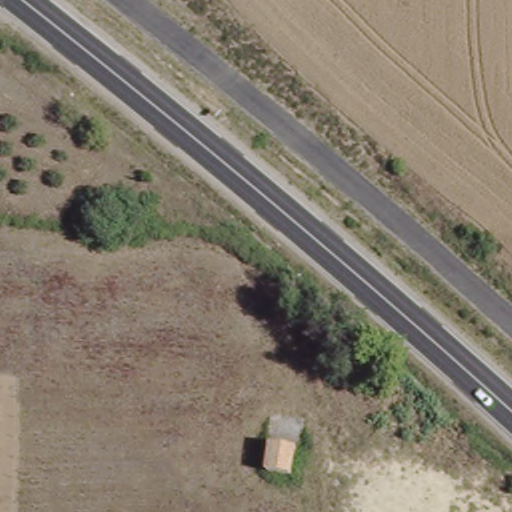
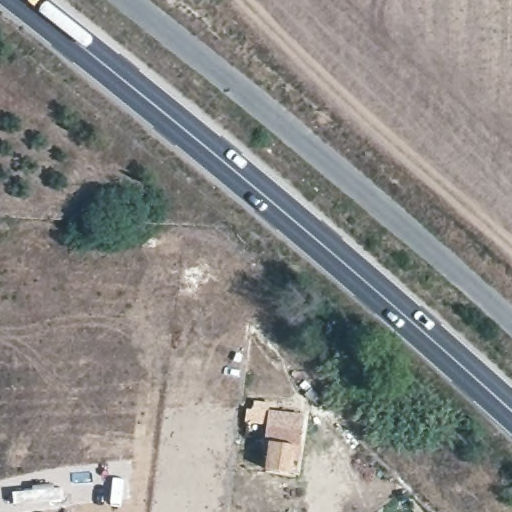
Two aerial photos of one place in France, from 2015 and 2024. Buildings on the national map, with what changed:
new [(293,472),(267,469),(268,412),(305,415),(302,445),(295,445),(293,472)]
demolished [(291,471),(270,470),(270,441),(293,442),(291,471)]

